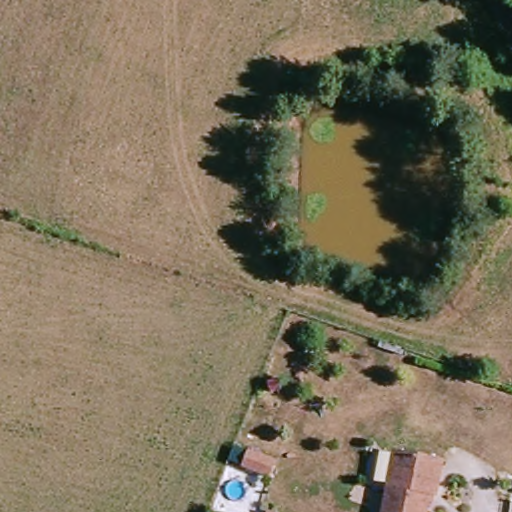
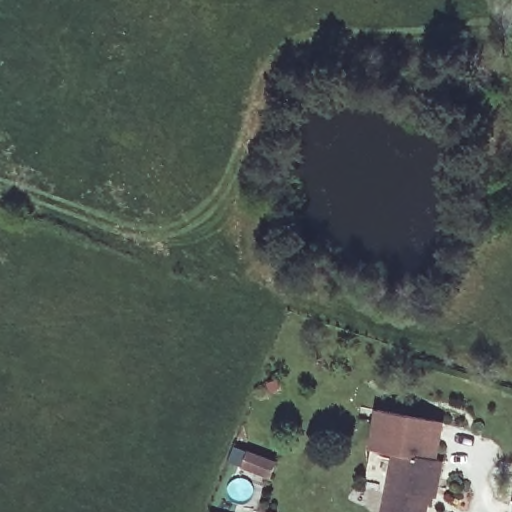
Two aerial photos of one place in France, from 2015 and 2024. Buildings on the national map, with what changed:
new [(445,424),(438,462),(397,455),(367,449),(375,410),(445,424)]
unchanged [(242,451),(269,463),(264,479),(236,468),(242,451)]
unchanged [(427,512),(387,512),(397,455),(442,463),(437,495),(430,495),(427,512)]

